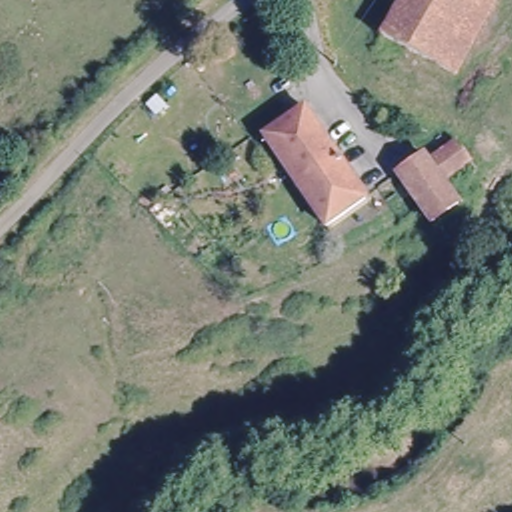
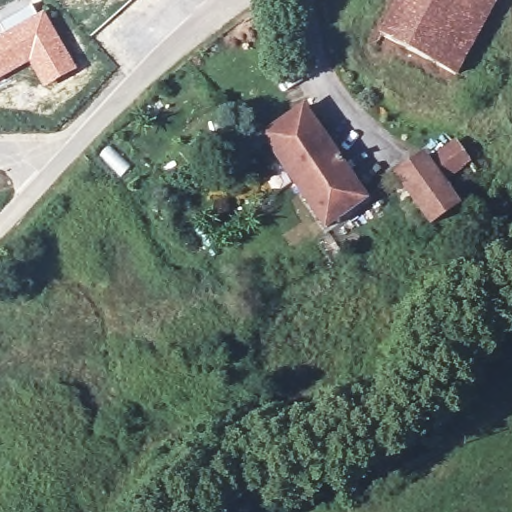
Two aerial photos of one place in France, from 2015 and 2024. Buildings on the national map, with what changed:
unchanged [(383,27),(398,0),(490,0),(454,66),(383,27)]
new [(0,23),(0,21),(31,4),(37,15),(44,11),(77,70),(44,89),(29,65),(0,80),(0,35),(5,32),(0,23)]
unchanged [(371,194),(327,221),(266,130),(277,121),(271,111),(283,101),(290,108),(302,99),(371,194)]
unchanged [(442,175),(449,188),(425,204),(393,158),(422,140),(428,146),(454,128),(474,154),(442,175)]

